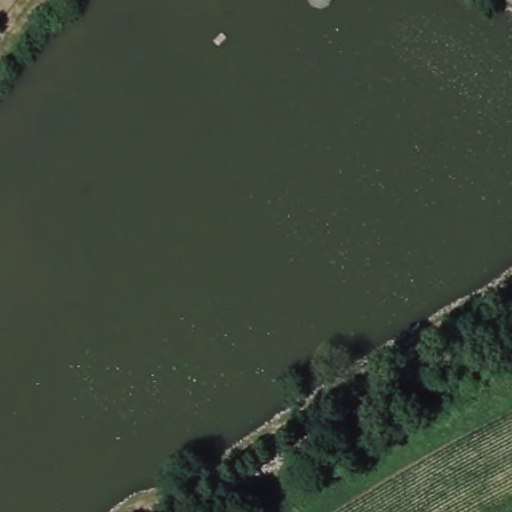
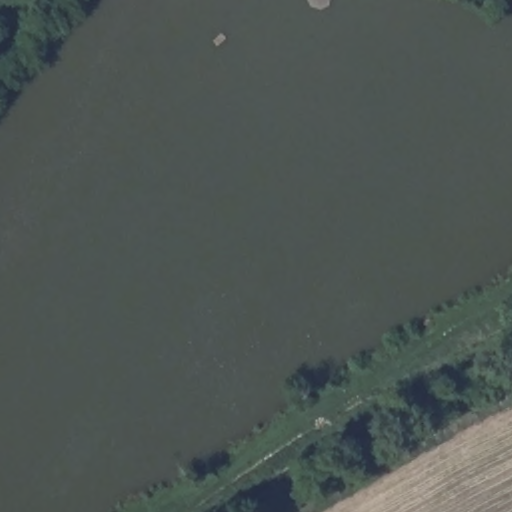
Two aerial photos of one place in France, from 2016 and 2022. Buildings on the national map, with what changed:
[]

